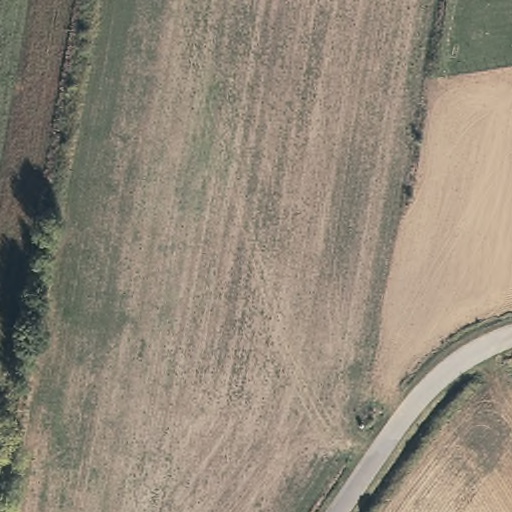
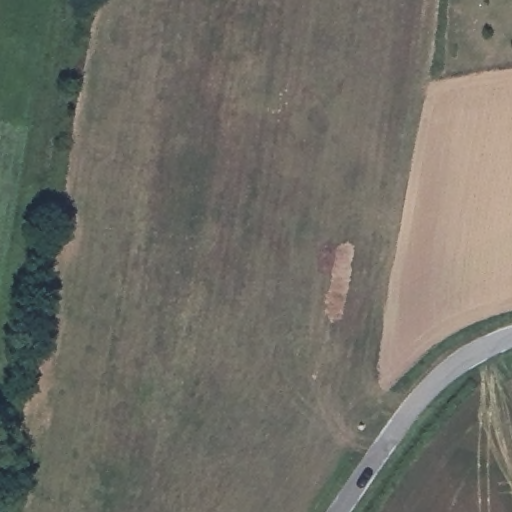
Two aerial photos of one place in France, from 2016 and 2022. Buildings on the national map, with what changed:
[]

